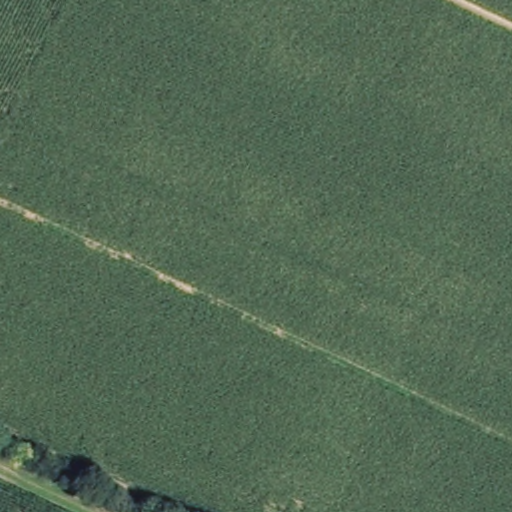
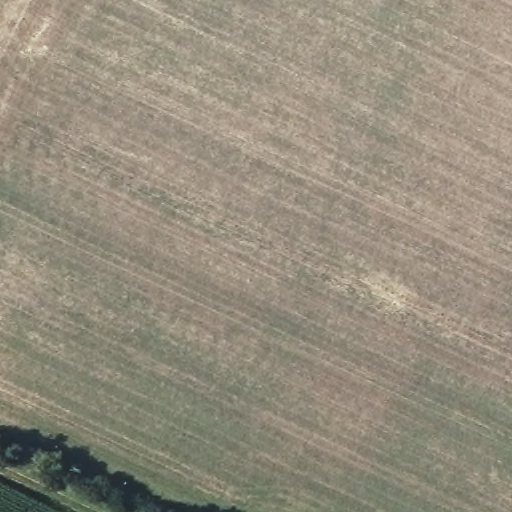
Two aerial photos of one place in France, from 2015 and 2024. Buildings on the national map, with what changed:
[]

